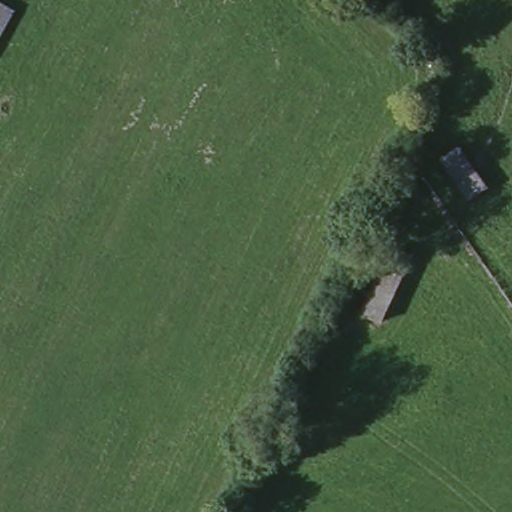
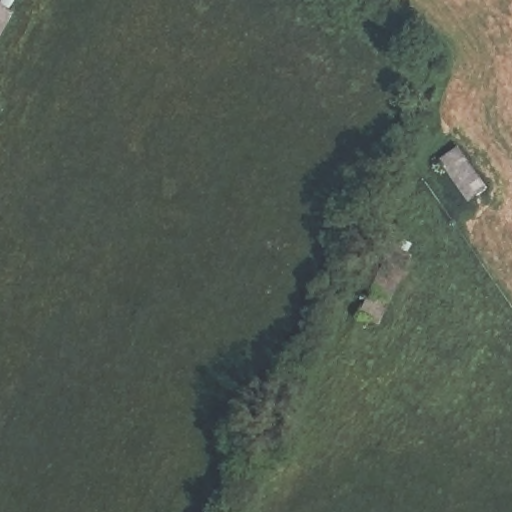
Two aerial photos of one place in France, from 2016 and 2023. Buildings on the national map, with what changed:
unchanged [(0,55),(0,0),(12,0),(27,7),(0,55)]
unchanged [(487,184),(472,197),(442,160),(459,146),(487,184)]
unchanged [(418,256),(386,326),(358,317),(392,245),(418,256)]

